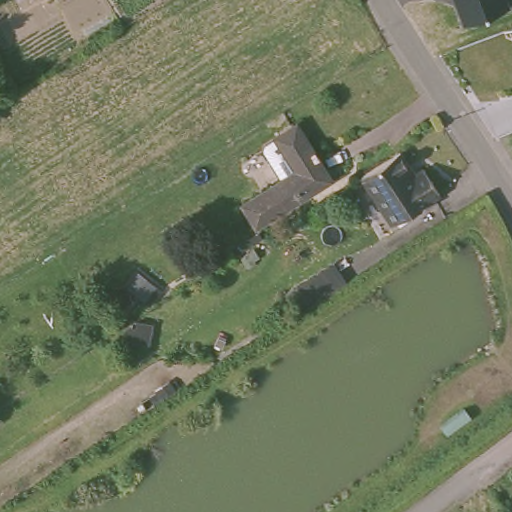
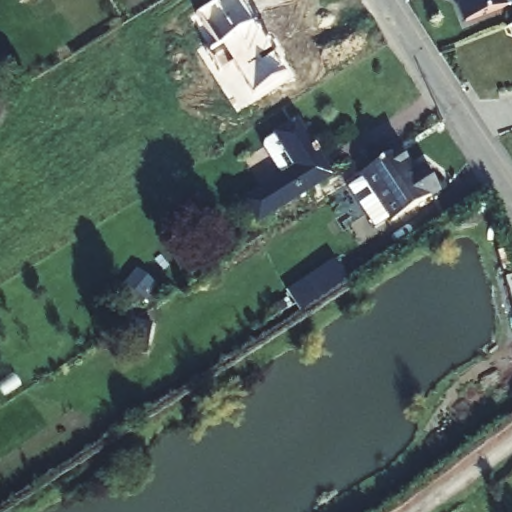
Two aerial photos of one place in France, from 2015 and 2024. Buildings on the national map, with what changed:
new [(251,22),(286,76),(253,95),(232,65),(219,75),(206,54),(216,46),(194,15),(220,0),(236,0),(251,22)]
unchanged [(508,4),(467,18),(460,0),(507,0),(508,4)]
unchanged [(297,174),(279,141),(299,127),(332,181),(256,230),(243,209),(297,174)]
unchanged [(413,172),(419,167),(437,193),(389,222),(355,174),(396,145),(413,172)]
new [(330,262),(344,283),(306,307),(293,286),(330,262)]

